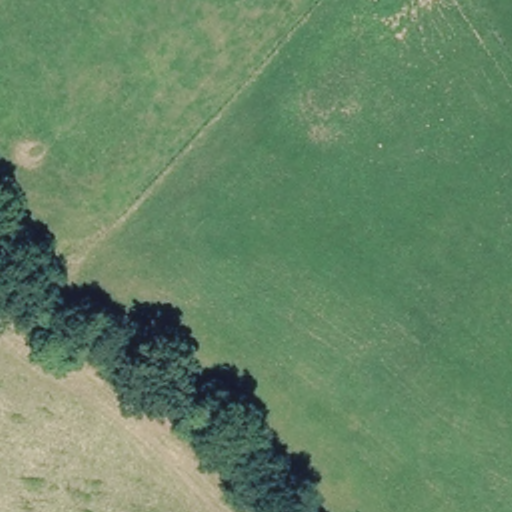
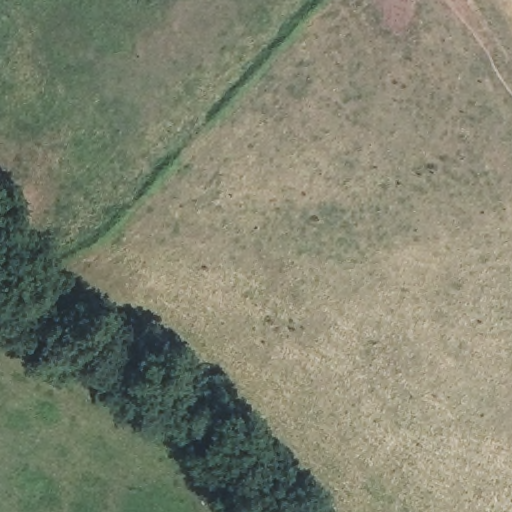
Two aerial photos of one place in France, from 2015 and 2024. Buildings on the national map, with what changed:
[]

